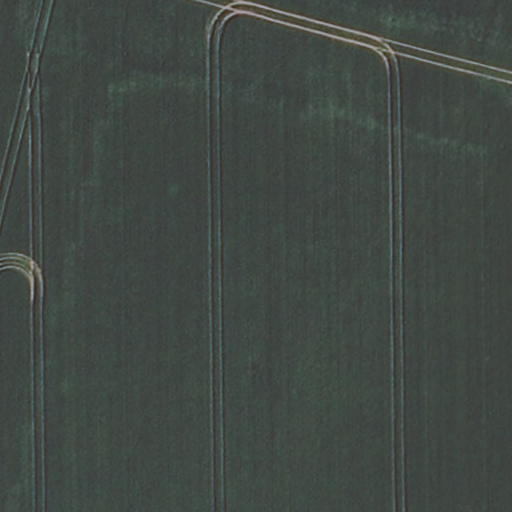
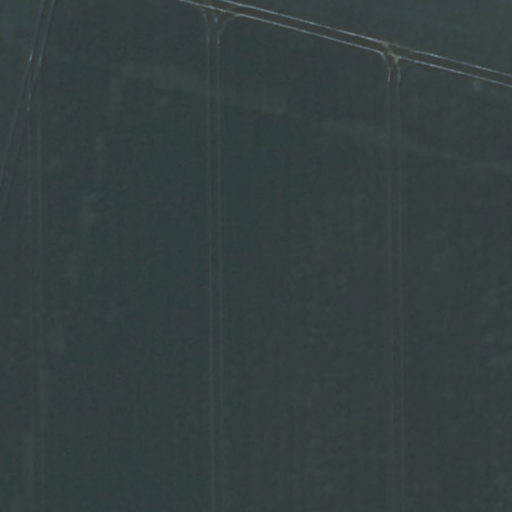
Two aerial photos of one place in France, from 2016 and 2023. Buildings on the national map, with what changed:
[]

